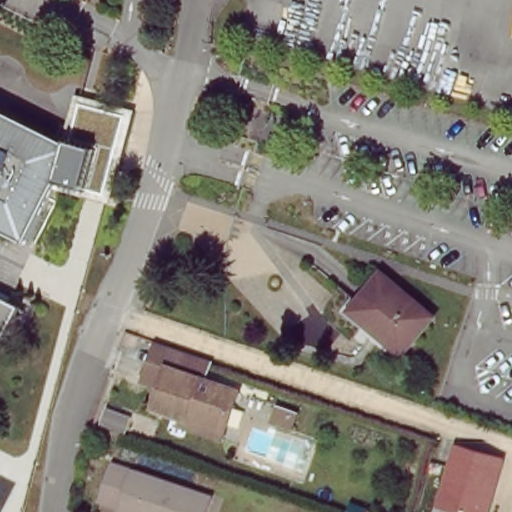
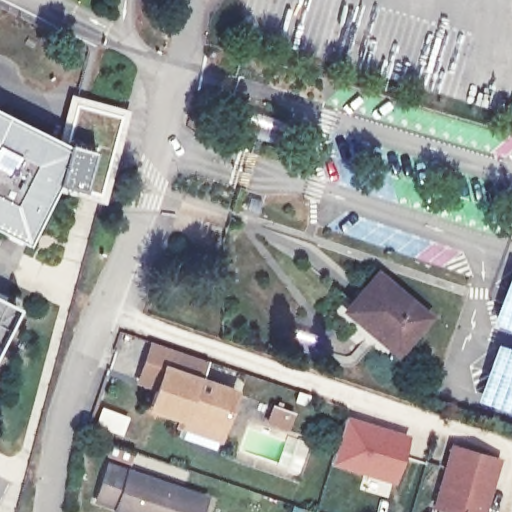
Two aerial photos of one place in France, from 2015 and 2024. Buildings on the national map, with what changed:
unchanged [(70,97),(135,112),(109,205),(82,192),(54,186),(74,147),(60,140),(70,97)]
unchanged [(60,140),(74,147),(54,186),(28,236),(0,222),(0,110),(60,140)]
unchanged [(430,317),(405,348),(372,324),(368,330),(348,314),(377,277),(430,317)]
unchanged [(17,308),(0,342),(0,300),(17,308)]
unchanged [(187,438),(190,431),(157,420),(165,397),(146,391),(159,355),(178,361),(192,365),(213,372),(206,392),(242,403),(230,438),(226,451),(187,438)]
unchanged [(300,407),(295,422),(276,417),(281,401),(300,407)]
new [(345,415),(412,436),(395,483),(330,465),(345,415)]
unchanged [(451,446),(500,460),(487,512),(447,512),(434,508),(451,446)]
unchanged [(101,498),(113,463),(210,495),(205,512),(126,512),(120,510),(121,505),(101,498)]

